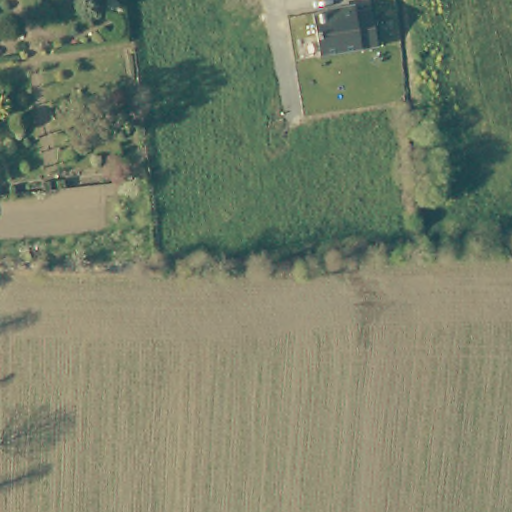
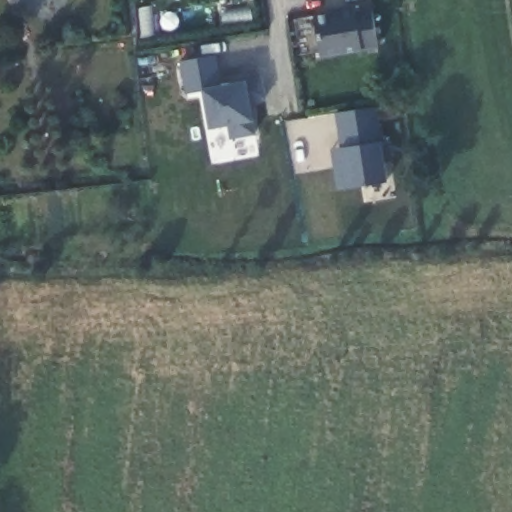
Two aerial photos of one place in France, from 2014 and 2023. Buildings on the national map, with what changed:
unchanged [(315,13),(357,5),(357,10),(371,7),(379,45),(322,56),(315,13)]
new [(220,85),(262,78),(265,97),(249,101),(255,135),(232,139),(229,123),(211,126),(205,90),(186,92),(182,60),(214,56),(220,85)]
new [(376,106),(381,140),(387,181),(347,187),(341,146),(337,112),(376,106)]

